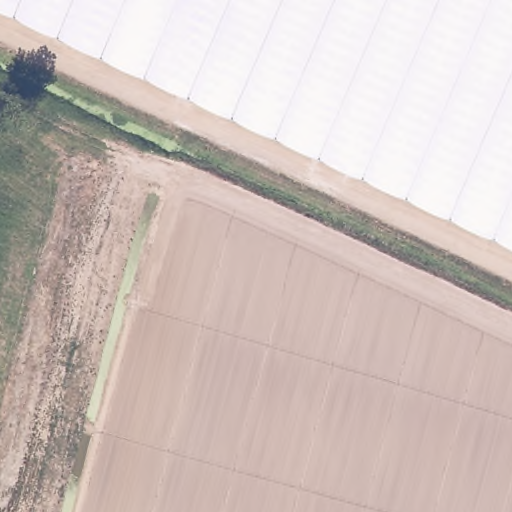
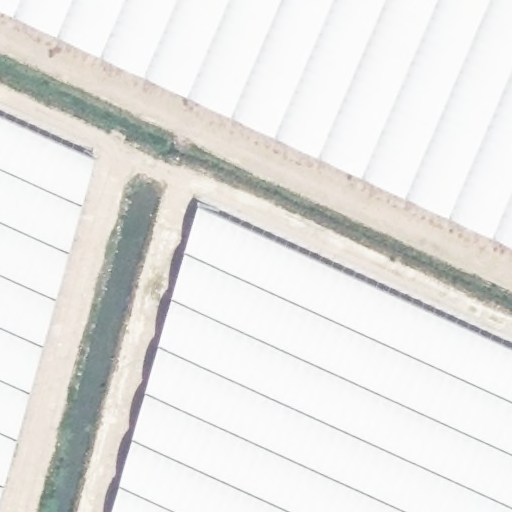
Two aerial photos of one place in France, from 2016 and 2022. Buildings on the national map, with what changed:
unchanged [(0,7),(0,0),(512,0),(512,246),(0,7)]
new [(0,117),(93,160),(0,495),(0,117)]
new [(196,204),(512,349),(512,512),(109,512),(196,204)]

